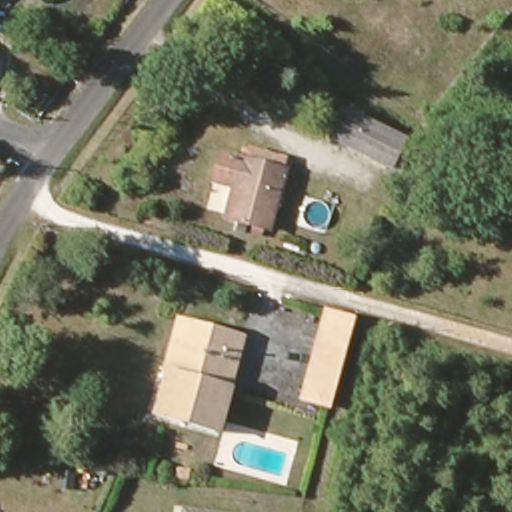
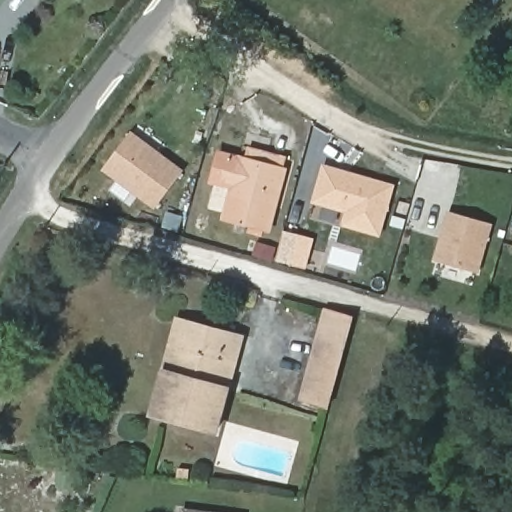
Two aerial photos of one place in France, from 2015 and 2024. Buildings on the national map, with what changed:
demolished [(396,163),(341,147),(352,119),(402,145),(396,163)]
new [(107,168),(132,134),(181,170),(155,204),(107,168)]
unchanged [(231,217),(235,187),(217,185),(222,155),(286,166),(276,225),(231,217)]
new [(393,186),(380,235),(346,225),(349,212),(314,203),(323,168),(393,186)]
new [(448,220),(489,230),(477,276),(436,265),(448,220)]
unchanged [(326,408),(299,398),(328,315),(355,322),(326,408)]
unchanged [(219,428),(155,405),(171,367),(188,325),(201,330),(249,349),(219,428)]
unchanged [(202,512),(179,512),(179,510),(202,512)]

